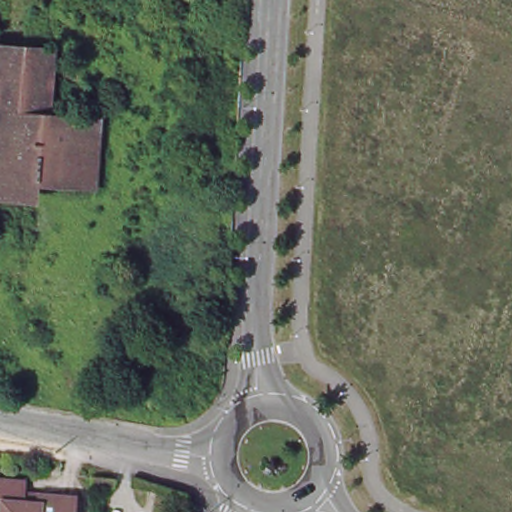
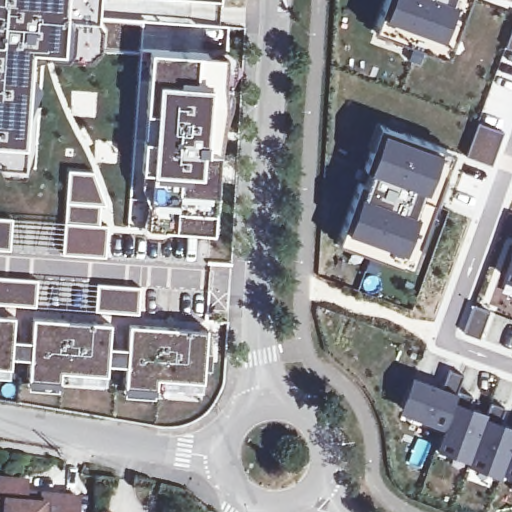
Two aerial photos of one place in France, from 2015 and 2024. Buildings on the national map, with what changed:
new [(99,18),(64,15),(61,50),(32,48),(22,167),(0,165),(0,0),(100,0),(99,18)]
new [(445,57),(374,32),(386,0),(466,0),(445,57)]
demolished [(44,50),(39,121),(59,125),(61,116),(89,119),(84,175),(35,171),(34,179),(15,177),(14,194),(0,192),(0,45),(44,50)]
new [(208,55),(218,49),(225,49),(236,58),(235,73),(228,90),(221,148),(215,234),(148,235),(144,229),(143,220),(146,205),(146,199),(141,186),(151,50),(208,55)]
new [(452,154),(412,268),(339,243),(381,128),(452,154)]
new [(67,169),(93,170),(101,204),(99,223),(107,224),(106,255),(62,253),(67,169)]
new [(13,216),(11,249),(0,248),(0,216),(13,216)]
new [(512,250),(512,284),(502,280),(512,250)]
new [(38,278),(36,307),(0,304),(0,276),(38,278)]
new [(95,282),(142,285),(140,313),(95,310),(95,282)]
new [(16,315),(15,337),(13,358),(11,369),(0,368),(0,314),(16,315)]
new [(15,337),(28,338),(30,315),(113,322),(112,343),(109,365),(109,375),(62,372),(59,391),(28,389),(29,359),(13,358),(15,337)]
new [(112,343),(125,344),(126,322),(208,326),(204,383),(159,379),(156,397),(124,395),(125,366),(109,365),(112,343)]
new [(455,399),(489,412),(488,415),(512,424),(512,478),(501,473),(499,477),(467,465),(468,461),(436,449),(444,430),(399,412),(412,376),(458,393),(455,399)]
unchanged [(0,511),(0,489),(24,491),(22,511),(31,512),(2,512),(2,511),(0,511)]
unchanged [(74,504),(74,512),(40,512),(40,502),(74,504)]

